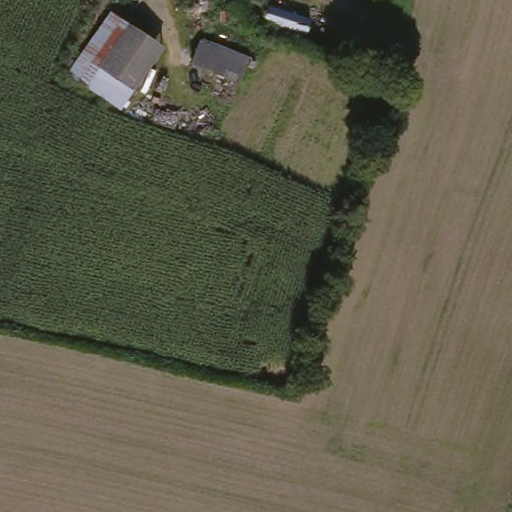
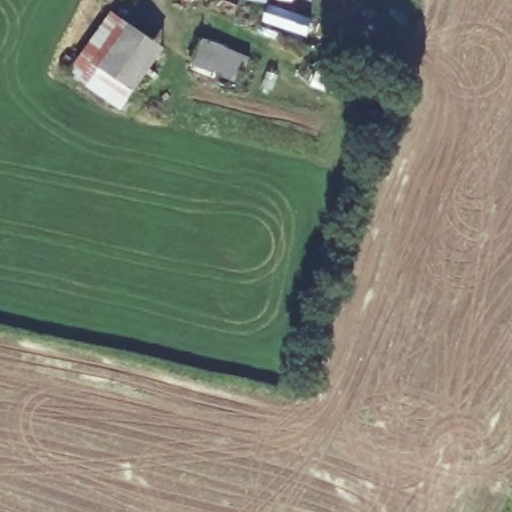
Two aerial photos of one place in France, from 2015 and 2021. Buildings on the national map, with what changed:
unchanged [(233,0),(261,0),(261,3),(233,0)]
unchanged [(130,97),(136,101),(123,117),(50,71),(60,53),(70,59),(107,9),(164,55),(130,97)]
unchanged [(201,47),(242,64),(234,83),(192,66),(201,47)]

